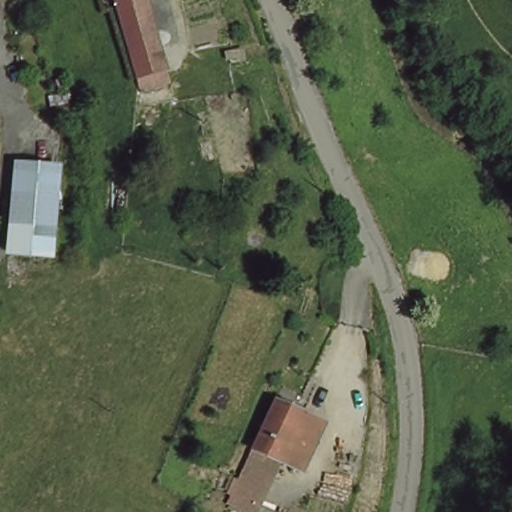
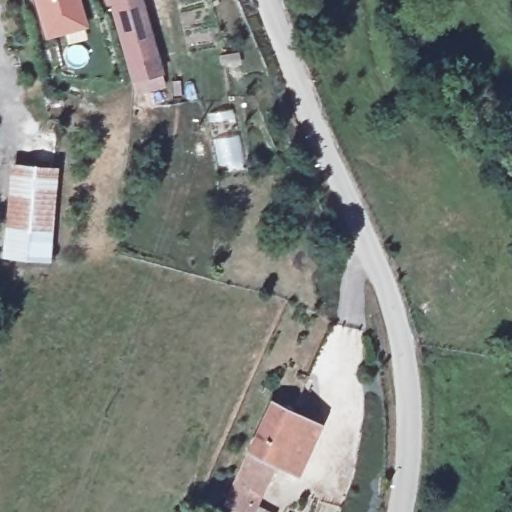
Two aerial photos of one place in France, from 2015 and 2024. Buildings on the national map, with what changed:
new [(45,39),(34,0),(81,0),(89,27),(45,39)]
unchanged [(100,4),(99,0),(161,0),(175,53),(164,56),(176,92),(167,96),(171,111),(141,119),(107,2),(100,4)]
unchanged [(12,152),(52,154),(47,215),(8,212),(12,152)]
unchanged [(47,215),(45,239),(15,240),(7,239),(8,212),(47,215)]
unchanged [(319,419),(295,472),(277,462),(260,505),(275,510),(275,512),(236,512),(215,503),(223,473),(235,478),(267,396),(319,419)]

